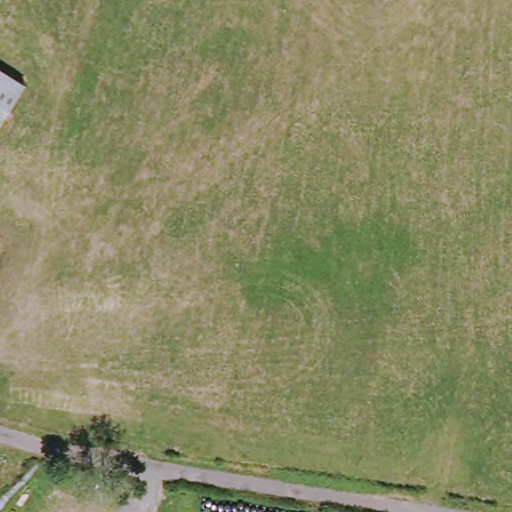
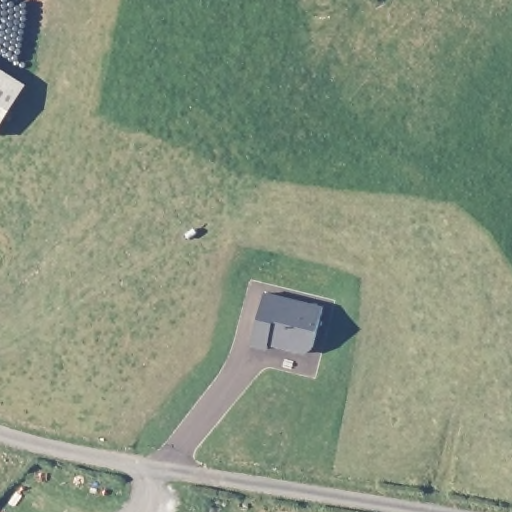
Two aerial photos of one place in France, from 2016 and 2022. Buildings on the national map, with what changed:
unchanged [(0,130),(0,74),(25,90),(0,130)]
new [(313,349),(306,354),(269,346),(268,350),(253,347),(266,293),(311,302),(323,307),(313,349)]

